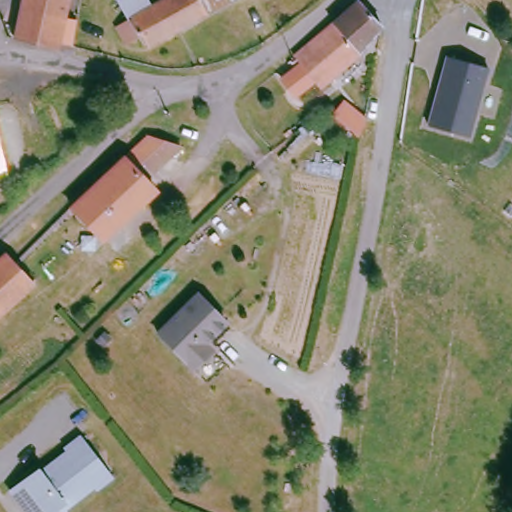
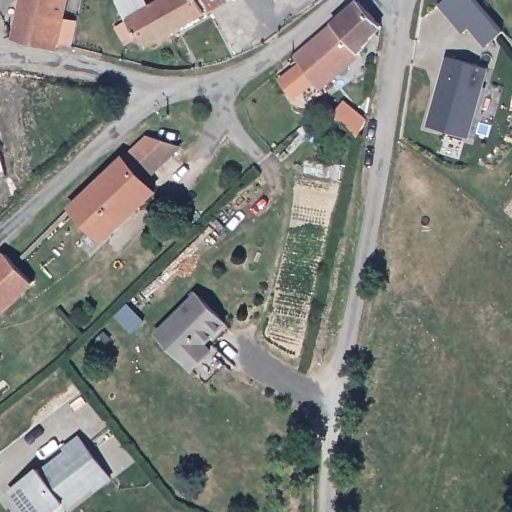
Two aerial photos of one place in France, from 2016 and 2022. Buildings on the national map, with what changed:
unchanged [(64,0),(60,15),(76,19),(73,28),(69,42),(56,39),(55,44),(12,34),(19,0),(64,0)]
unchanged [(167,0),(169,5),(177,0),(234,0),(151,47),(147,40),(137,45),(127,29),(136,23),(126,5),(135,0),(167,0)]
new [(469,27),(462,34),(437,6),(444,0),(471,0),(500,32),(486,46),(469,27)]
unchanged [(356,60),(321,89),(296,60),(360,1),(381,25),(356,60)]
unchanged [(444,56),(489,68),(469,137),(426,126),(444,56)]
unchanged [(364,115),(353,131),(331,113),(341,97),(364,115)]
unchanged [(179,148),(151,176),(157,183),(103,238),(72,202),(126,151),(146,130),(185,141),(179,148)]
unchanged [(6,170),(0,172),(0,140),(6,170)]
unchanged [(34,281),(0,314),(0,261),(8,254),(14,261),(34,281)]
unchanged [(218,317),(198,340),(220,362),(203,378),(153,327),(191,290),(218,317)]
unchanged [(108,473),(66,503),(63,500),(47,512),(35,512),(25,501),(19,501),(8,486),(37,464),(39,467),(66,446),(61,439),(74,429),(108,473)]

